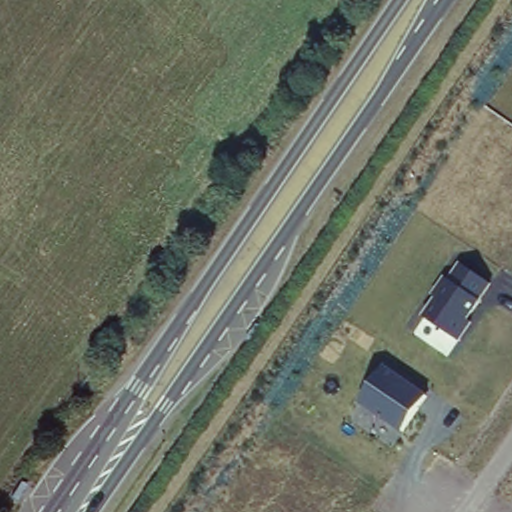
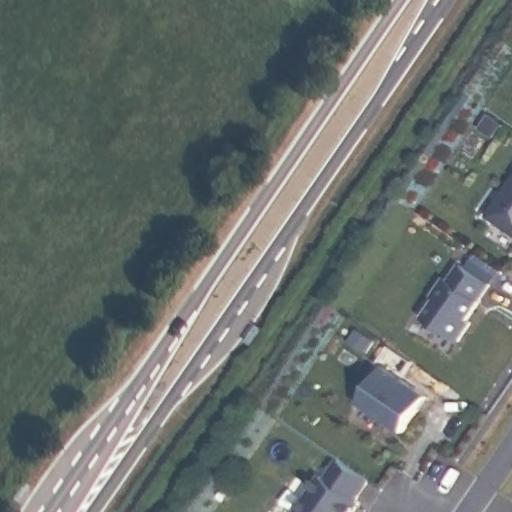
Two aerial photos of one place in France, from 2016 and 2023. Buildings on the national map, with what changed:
new [(512,181),(512,234),(487,217),(512,181)]
unchanged [(467,318),(475,325),(462,341),(424,316),(460,262),(492,284),(467,318)]
unchanged [(402,433),(359,402),(383,365),(427,395),(402,433)]
new [(312,501),(298,492),(328,450),(367,478),(345,508),(350,512),(303,512),(312,501)]

